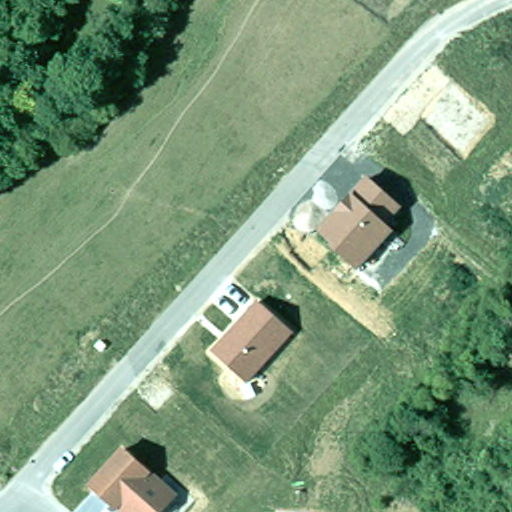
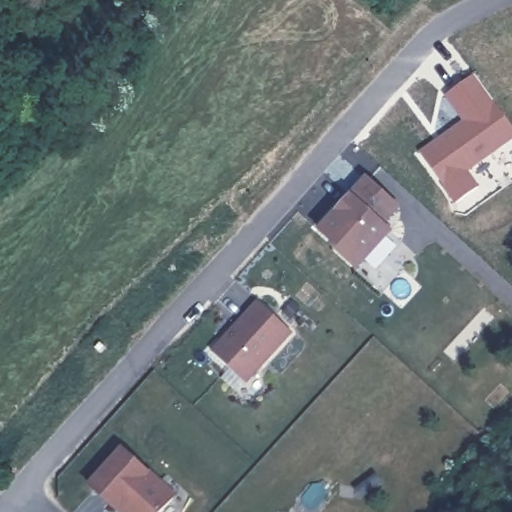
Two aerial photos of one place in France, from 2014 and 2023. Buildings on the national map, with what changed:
new [(438,147),(448,139),(445,135),(465,121),(446,94),(474,74),(512,127),(512,136),(466,170),(478,187),(456,203),(421,153),(435,143),(438,147)]
unchanged [(400,207),(387,225),(393,232),(358,268),(318,227),(364,179),(400,207)]
unchanged [(291,333),(246,381),(213,350),(259,300),(291,333)]
unchanged [(113,511),(88,488),(122,451),(173,499),(161,512),(124,512),(118,506),(113,511)]
new [(376,473),(383,482),(366,495),(359,485),(376,473)]

